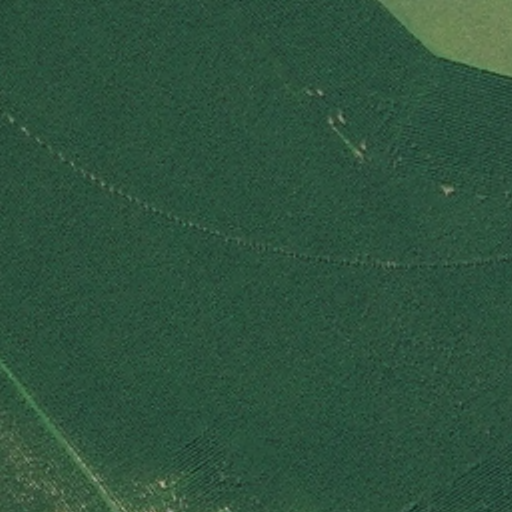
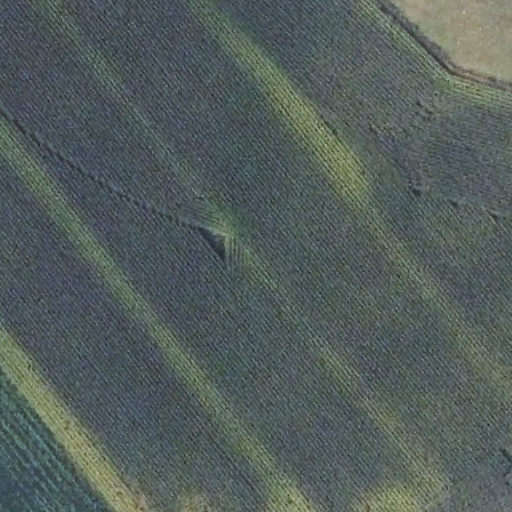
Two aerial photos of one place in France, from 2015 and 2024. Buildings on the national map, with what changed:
[]

